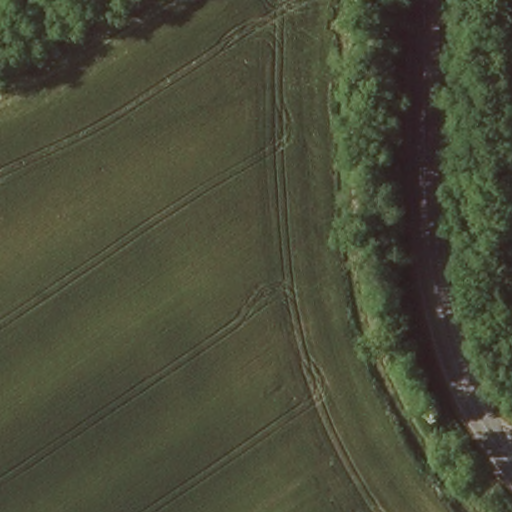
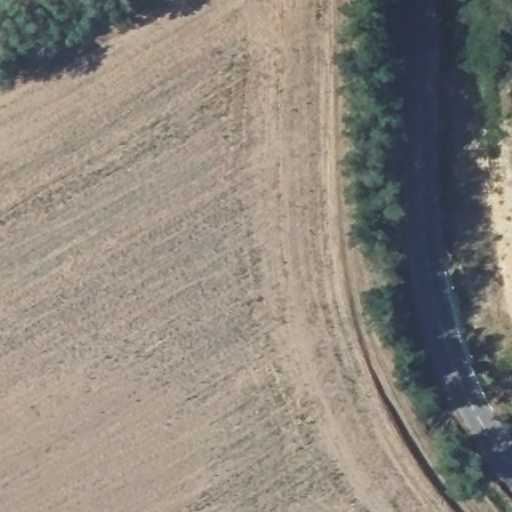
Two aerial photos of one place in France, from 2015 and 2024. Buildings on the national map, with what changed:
unchanged [(0,4),(0,0),(6,0),(6,4),(0,4)]

